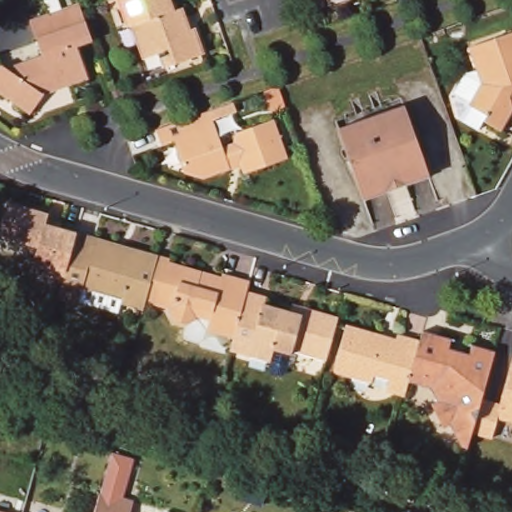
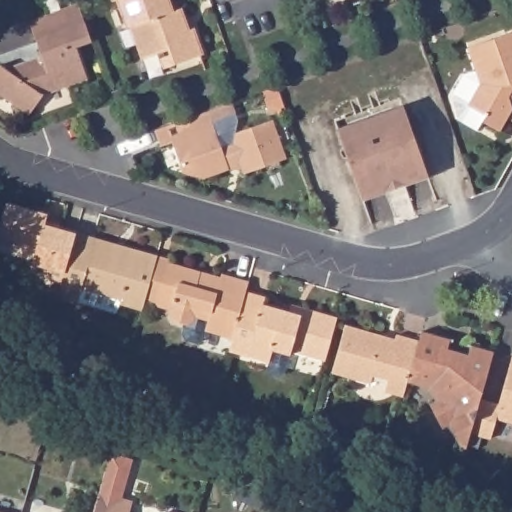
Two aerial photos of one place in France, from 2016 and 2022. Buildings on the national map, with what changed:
unchanged [(2,63),(39,50),(27,15),(68,0),(75,0),(76,2),(88,35),(72,40),(84,72),(41,88),(26,107),(0,90),(0,61),(2,63)]
unchanged [(183,7),(190,30),(194,28),(203,52),(166,66),(161,54),(145,59),(134,25),(129,27),(120,0),(170,0),(174,10),(183,7)]
unchanged [(512,106),(501,125),(484,115),(478,124),(459,112),(453,95),(457,88),(472,97),(484,77),(472,44),(512,29),(512,94),(511,95),(512,98),(512,106)]
unchanged [(402,178),(408,194),(395,197),(365,112),(401,100),(424,165),(426,170),(402,178)]
unchanged [(282,105),(285,113),(277,116),(274,108),(282,105)]
unchanged [(199,176),(180,171),(170,140),(157,144),(152,130),(197,114),(206,110),(219,147),(229,145),(231,132),(270,119),(281,149),(273,160),(239,171),(237,165),(225,166),(199,176)]
unchanged [(358,189),(335,124),(365,112),(395,197),(388,200),(382,186),(360,193),(358,189)]
unchanged [(39,246),(0,235),(0,233),(9,201),(50,214),(48,219),(63,222),(62,227),(77,231),(63,281),(32,272),(39,246)]
unchanged [(63,281),(77,231),(159,254),(144,308),(122,301),(119,312),(80,301),(79,304),(58,297),(63,281)]
unchanged [(211,319),(199,315),(188,323),(175,320),(170,311),(171,307),(157,304),(169,261),(203,271),(223,276),(224,273),(250,281),(247,290),(247,291),(234,337),(208,329),(211,319)]
unchanged [(247,291),(267,296),(265,303),(291,311),(294,305),(305,308),(339,318),(327,359),(294,349),(292,353),(275,348),(271,361),(230,350),(234,337),(247,291)]
unchanged [(390,378),(375,373),(372,382),(335,371),(348,325),(386,335),(397,339),(398,334),(420,340),(409,380),(405,395),(387,390),(390,378)]
unchanged [(432,386),(409,380),(420,340),(422,335),(423,330),(451,338),(448,348),(470,354),(473,345),(496,350),(485,388),(482,398),(472,433),(468,446),(463,445),(451,422),(444,426),(432,403),(439,400),(436,395),(432,386)]
unchanged [(501,403),(512,364),(512,423),(499,420),(493,438),(472,433),(482,398),(501,403)]
unchanged [(221,391),(231,394),(228,405),(218,401),(221,391)]
unchanged [(233,479),(251,484),(248,495),(230,490),(233,479)]
unchanged [(100,496),(102,490),(135,500),(131,512),(95,512),(100,496)]
unchanged [(12,512),(0,512),(0,509),(12,512)]
unchanged [(166,511),(169,512),(164,512),(166,511)]

